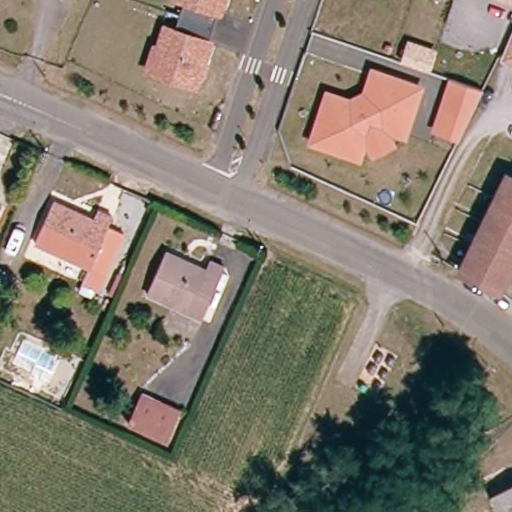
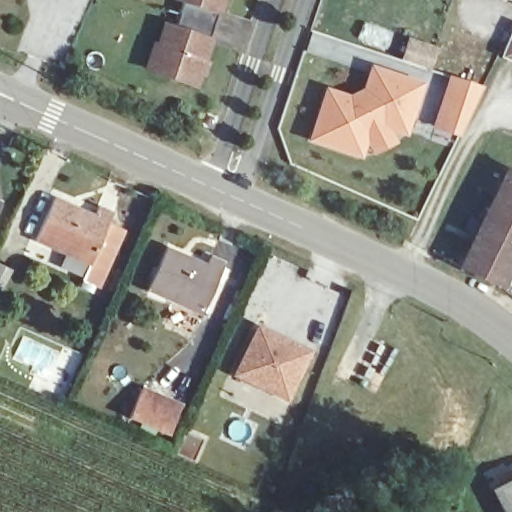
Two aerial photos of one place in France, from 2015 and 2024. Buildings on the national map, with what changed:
unchanged [(174,32),(184,2),(178,0),(225,0),(195,87),(146,69),(154,48),(156,49),(164,28),(174,32)]
unchanged [(512,61),(499,55),(512,25),(512,61)]
unchanged [(437,48),(431,65),(405,56),(410,39),(437,48)]
unchanged [(372,144),(368,125),(361,146),(314,130),(330,85),(352,92),(370,88),(377,66),(426,84),(410,129),(388,121),(392,141),(372,144)]
unchanged [(483,88),(458,135),(428,120),(451,76),(483,88)]
unchanged [(505,168),(512,171),(512,255),(495,283),(455,257),(505,168)]
unchanged [(82,285),(91,268),(37,240),(57,203),(75,211),(75,213),(95,224),(100,212),(116,220),(112,229),(129,238),(108,277),(106,275),(97,293),(82,285)]
unchanged [(0,216),(0,211),(2,211),(0,216)]
unchanged [(199,326),(145,298),(165,258),(179,264),(178,269),(201,281),(206,268),(221,275),(199,326)]
new [(312,352),(288,403),(232,377),(258,326),(312,352)]
unchanged [(160,436),(122,416),(140,386),(176,406),(160,436)]
unchanged [(512,512),(500,512),(492,489),(512,484),(512,512)]

